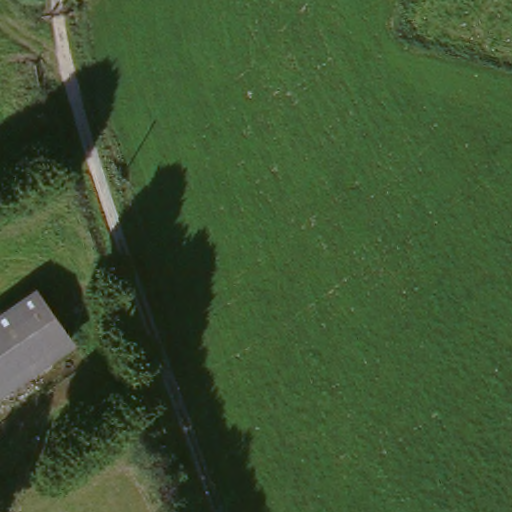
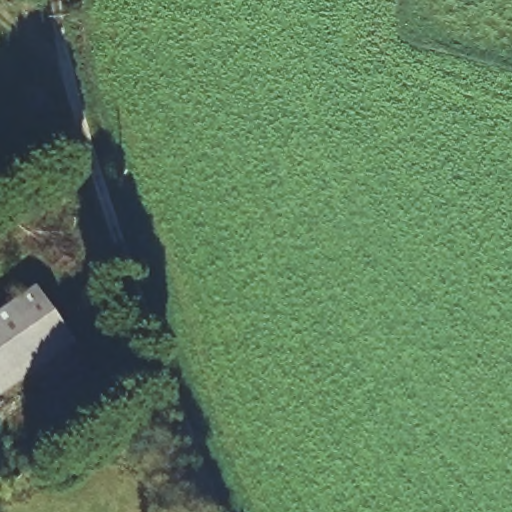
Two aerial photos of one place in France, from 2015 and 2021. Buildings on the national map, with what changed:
unchanged [(0,400),(0,317),(33,295),(69,351),(0,400)]

